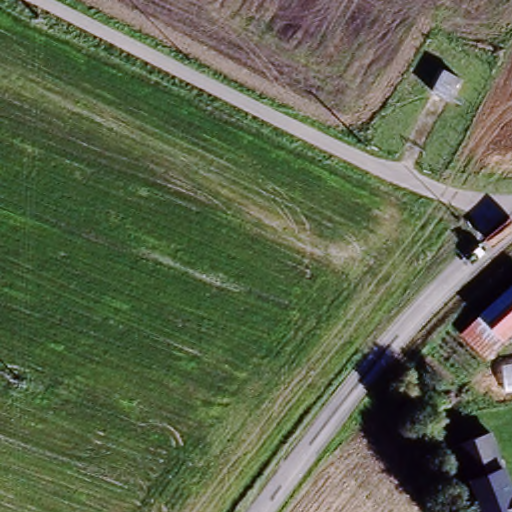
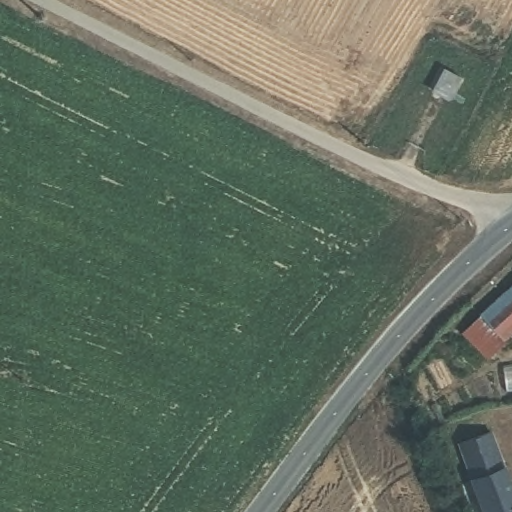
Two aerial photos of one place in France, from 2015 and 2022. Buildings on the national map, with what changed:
unchanged [(460,78),(447,102),(430,93),(442,69),(460,78)]
unchanged [(485,362),(456,336),(512,282),(512,336),(485,362)]
unchanged [(455,448),(485,435),(512,501),(512,512),(481,512),(455,448)]

